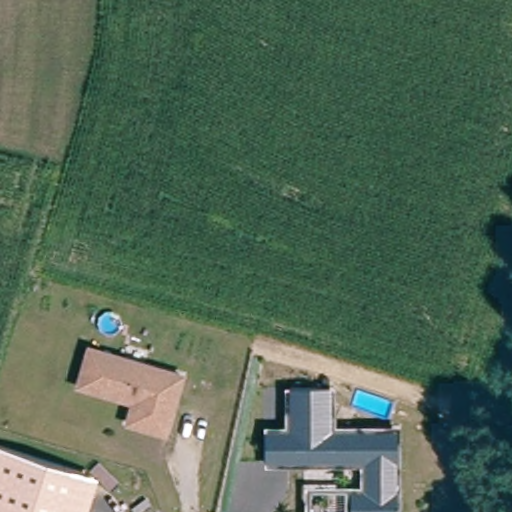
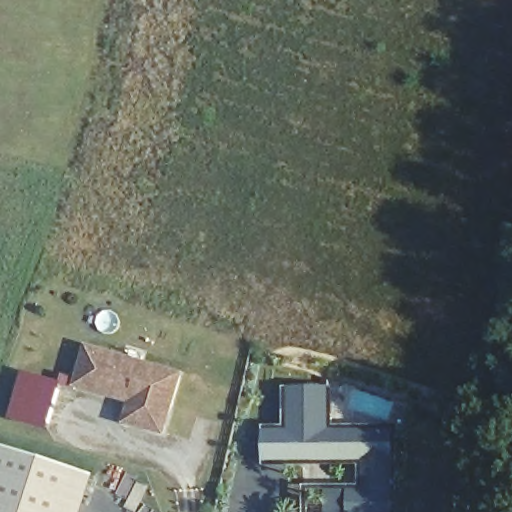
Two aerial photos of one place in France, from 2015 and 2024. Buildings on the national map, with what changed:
unchanged [(182,375),(164,432),(128,421),(134,400),(79,383),(90,347),(182,375)]
new [(26,374),(64,385),(51,432),(13,421),(26,374)]
unchanged [(398,433),(398,493),(393,493),(392,512),(352,512),(353,492),(368,493),(369,463),(293,462),(269,461),(269,431),(294,431),(294,387),(334,388),(334,432),(398,433)]
unchanged [(84,512),(0,512),(0,446),(96,477),(84,512)]

